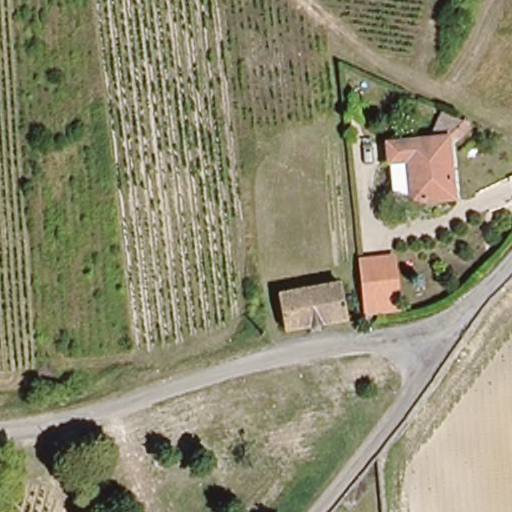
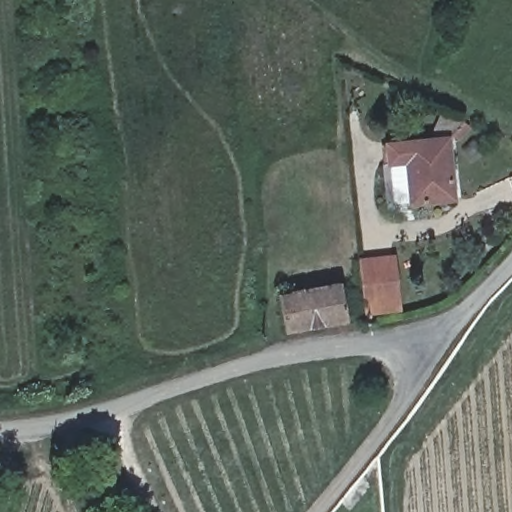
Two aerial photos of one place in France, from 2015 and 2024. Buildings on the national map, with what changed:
unchanged [(451,135),(461,122),(468,128),(458,141),(451,135)]
unchanged [(384,142),(448,137),(454,195),(392,203),(384,142)]
unchanged [(357,263),(357,261),(388,258),(394,308),(362,311),(357,263)]
unchanged [(278,295),(342,281),(349,312),(286,326),(278,295)]

